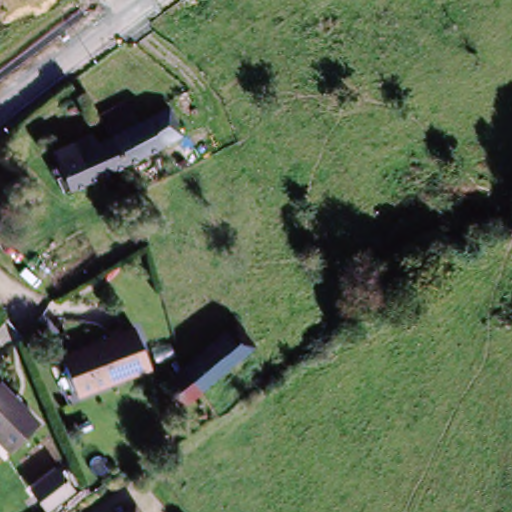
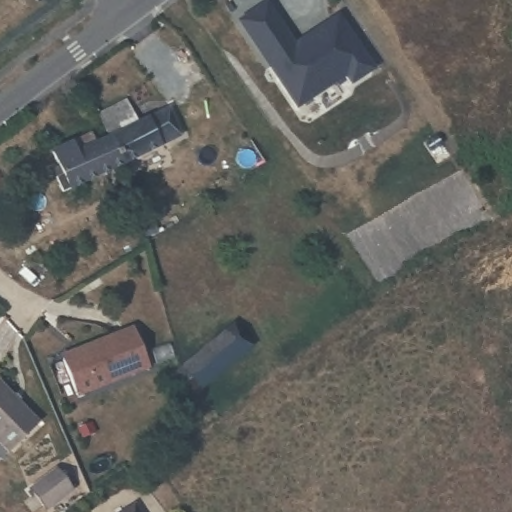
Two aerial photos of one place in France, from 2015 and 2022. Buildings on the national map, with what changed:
demolished [(248,5),(245,0),(272,0),(253,11),(248,5)]
new [(361,76),(355,68),(306,99),(250,12),(269,0),(280,0),(306,41),(329,27),(326,23),(349,9),(383,63),(361,76)]
unchanged [(134,109),(139,118),(166,108),(183,144),(63,196),(46,151),(134,109)]
unchanged [(24,264),(41,285),(28,296),(8,273),(24,264)]
unchanged [(128,325),(145,367),(71,396),(54,355),(128,325)]
unchanged [(158,384),(181,367),(228,329),(249,353),(199,391),(178,409),(158,384)]
unchanged [(31,430),(0,452),(0,386),(31,430)]
unchanged [(56,512),(45,512),(34,498),(63,476),(78,496),(56,512)]

